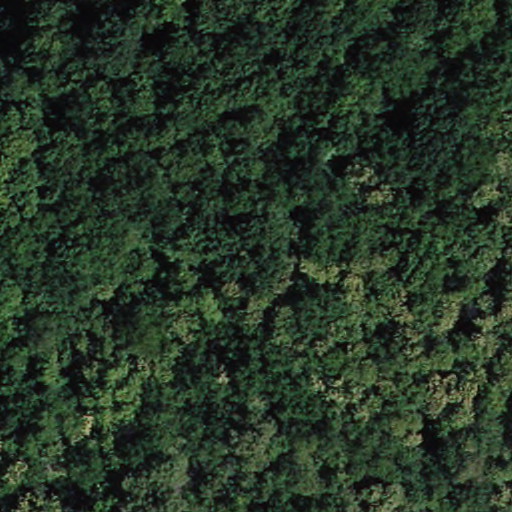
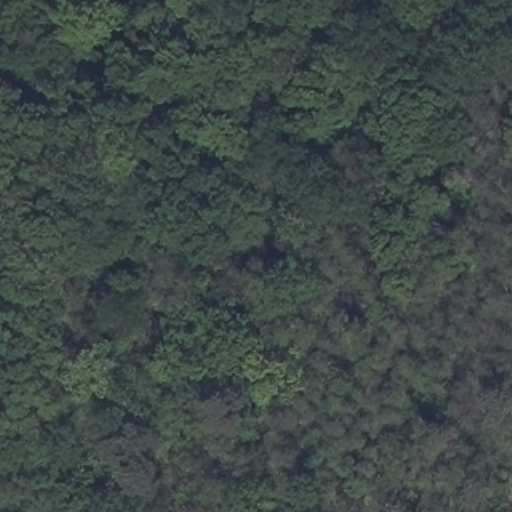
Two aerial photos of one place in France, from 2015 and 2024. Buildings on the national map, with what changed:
[]

